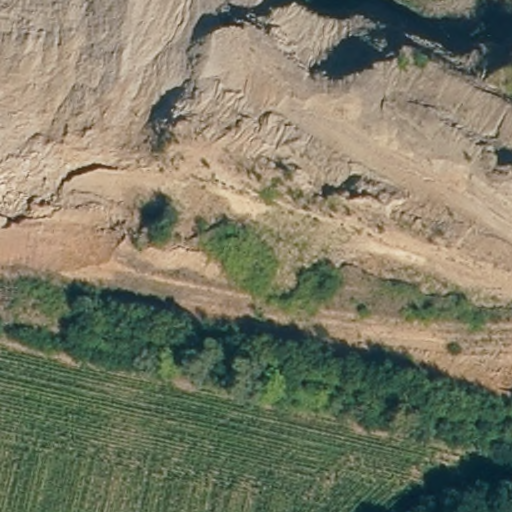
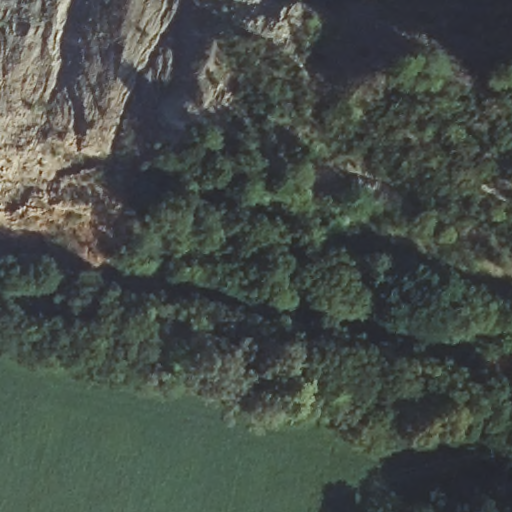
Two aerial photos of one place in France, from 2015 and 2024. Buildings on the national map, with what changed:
[]

